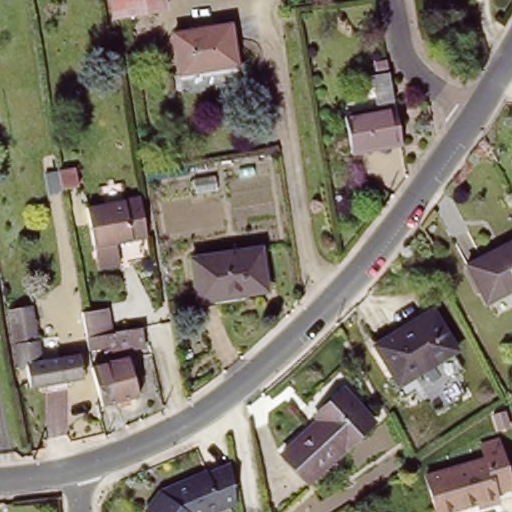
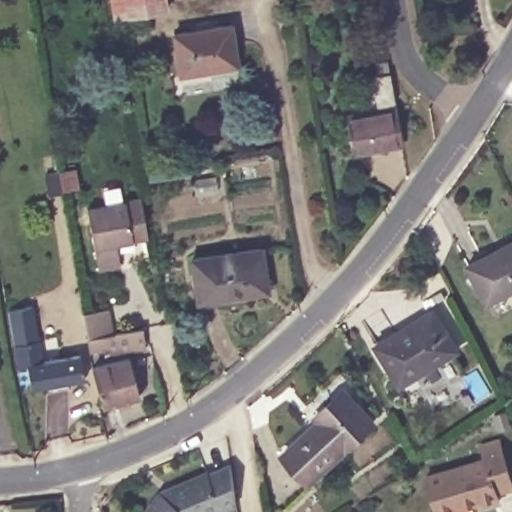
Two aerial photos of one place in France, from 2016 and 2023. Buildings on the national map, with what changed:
unchanged [(168,15),(115,22),(111,0),(166,0),(168,15)]
unchanged [(231,39),(238,79),(181,91),(174,49),(231,39)]
unchanged [(391,106),(375,109),(369,80),(386,77),(391,106)]
unchanged [(400,146),(347,157),(340,121),(393,110),(400,146)]
unchanged [(77,167),(81,185),(63,188),(60,171),(77,167)]
unchanged [(88,208),(140,198),(142,197),(150,236),(147,237),(120,242),(124,264),(100,268),(95,246),(88,208)]
unchanged [(462,269),(512,244),(512,290),(481,306),(462,269)]
unchanged [(264,290),(192,301),(185,260),(257,248),(264,290)]
unchanged [(32,338),(35,337),(37,347),(55,344),(57,356),(76,352),(80,378),(28,388),(22,363),(15,363),(5,313),(5,308),(25,304),(25,309),(32,338)]
unchanged [(371,344),(428,310),(451,349),(395,384),(371,344)]
unchanged [(141,346),(85,354),(81,336),(83,336),(81,322),(110,318),(112,331),(137,327),(141,346)]
unchanged [(87,368),(125,357),(135,395),(99,406),(87,368)]
unchanged [(276,456),(313,421),(310,417),(339,391),(370,424),(303,486),(276,456)]
unchanged [(485,462),(482,450),(500,446),(512,488),(512,493),(497,498),(500,506),(482,512),(480,512),(478,506),(460,512),(438,512),(428,480),(485,462)]
unchanged [(213,512),(148,512),(145,509),(161,489),(210,469),(210,471),(231,463),(238,501),(213,512)]

